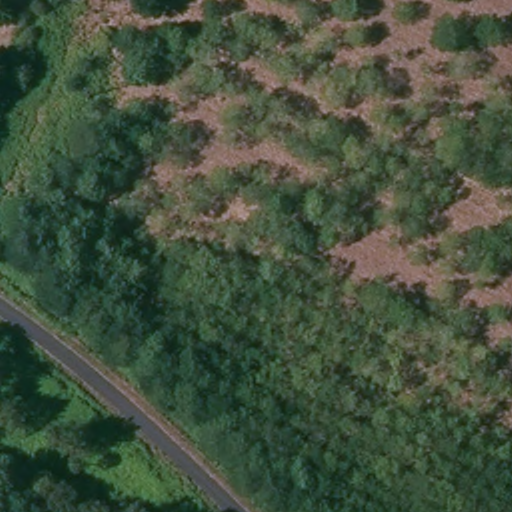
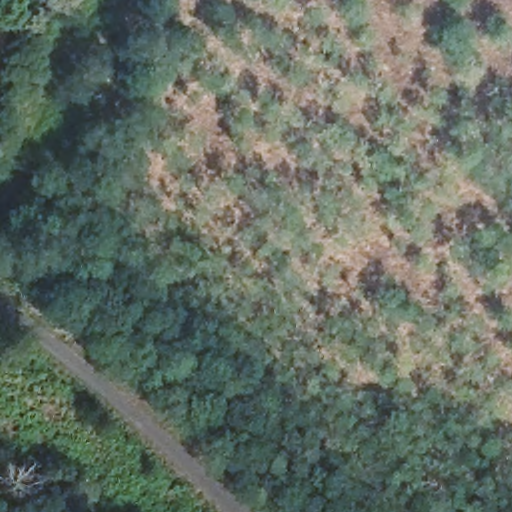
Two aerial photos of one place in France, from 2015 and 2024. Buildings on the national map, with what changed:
unchanged [(67,73),(62,84),(49,78),(54,67),(67,73)]

